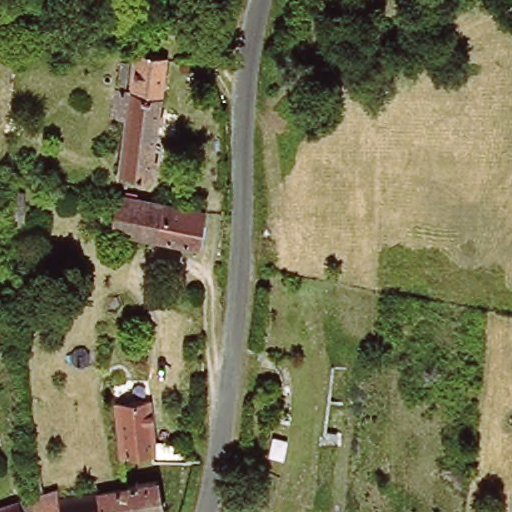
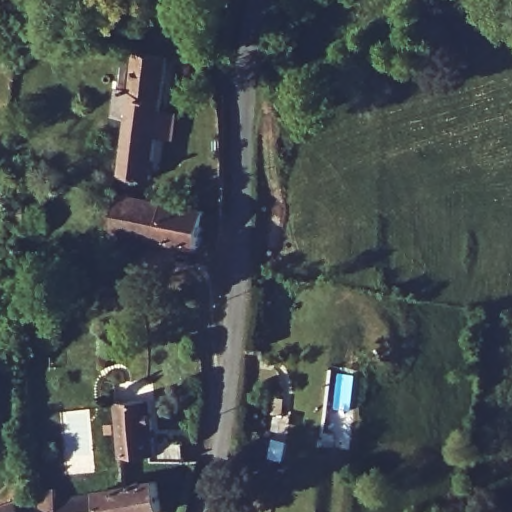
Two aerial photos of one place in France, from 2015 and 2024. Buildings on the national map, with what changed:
unchanged [(159,134),(156,165),(124,162),(135,97),(117,95),(123,66),(139,68),(141,54),(170,58),(159,134)]
unchanged [(117,216),(120,192),(166,201),(158,237),(117,231),(117,216)]
unchanged [(158,237),(166,201),(209,213),(204,248),(158,237)]
unchanged [(176,454),(111,461),(104,401),(152,397),(155,421),(155,431),(189,429),(185,453),(193,452),(192,468),(176,469),(176,454)]
unchanged [(131,490),(179,478),(186,504),(159,512),(63,512),(61,506),(131,490)]
unchanged [(0,510),(56,490),(61,506),(63,512),(0,512),(0,510)]

